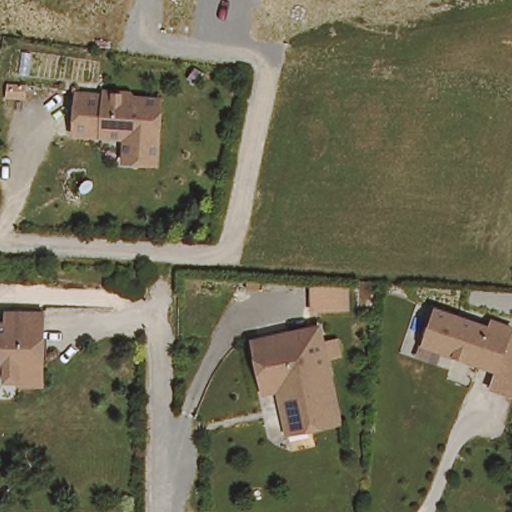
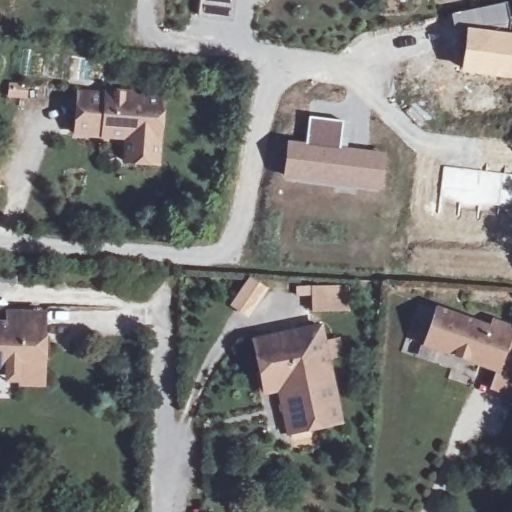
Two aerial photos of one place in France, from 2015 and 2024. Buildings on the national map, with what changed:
new [(507,1),(509,32),(465,27),(453,28),(450,12),(507,1)]
new [(509,32),(512,32),(512,80),(459,73),(465,27),(509,32)]
unchanged [(121,167),(122,144),(71,140),(74,99),(101,101),(102,97),(128,99),(131,103),(158,105),(155,146),(153,170),(121,167)]
new [(286,140),(304,142),(308,115),(344,120),(341,146),(389,153),(384,192),(281,181),(286,140)]
new [(512,174),(512,206),(441,202),(443,166),(512,174)]
unchanged [(2,200),(0,200),(0,168),(4,168),(2,200)]
new [(352,284),(352,311),(311,312),(310,285),(352,284)]
unchanged [(499,371),(480,364),(443,351),(425,345),(427,341),(437,311),(491,330),(494,322),(512,329),(512,331),(511,333),(512,334),(512,395),(493,388),(499,371)]
unchanged [(10,375),(0,374),(0,331),(14,331),(14,320),(49,320),(48,335),(45,337),(48,341),(48,352),(54,358),(48,363),(47,389),(25,389),(10,389),(10,375)]
unchanged [(295,439),(285,395),(271,398),(259,346),(326,332),(329,347),(345,344),(348,360),(333,363),(346,427),(295,439)]

